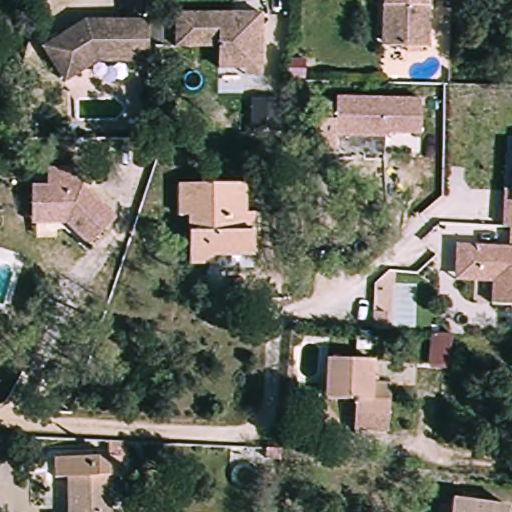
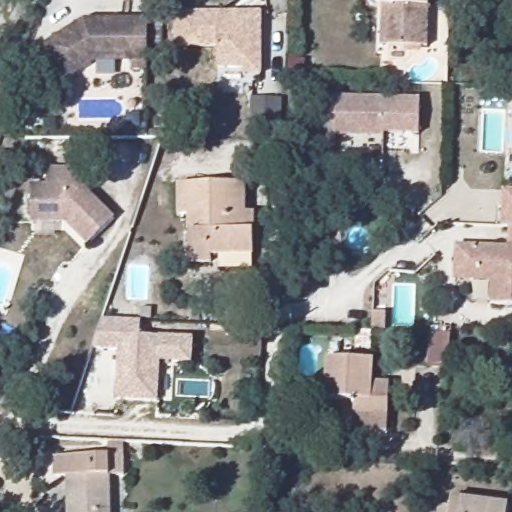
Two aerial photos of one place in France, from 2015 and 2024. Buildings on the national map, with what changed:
unchanged [(385,0),(432,0),(431,46),(394,45),(383,45),(385,3),(385,0)]
unchanged [(245,76),(244,70),(217,69),(217,46),(174,47),(175,14),(261,13),(261,60),(261,75),(245,76)]
unchanged [(145,69),(126,70),(125,59),(94,57),(86,63),(91,72),(66,87),(42,52),(82,25),(146,26),(145,69)]
unchanged [(322,100),(338,101),(339,95),(423,102),(420,136),(386,134),(385,138),(321,132),(322,100)]
unchanged [(32,211),(33,182),(48,182),(48,164),(83,165),(83,183),(114,217),(87,243),(67,220),(32,219),(32,211)]
unchanged [(244,183),(241,224),(251,227),(248,251),(208,248),(206,258),(186,257),(191,209),(181,209),(184,178),(244,183)]
unchanged [(512,189),(512,226),(509,225),(501,225),(503,205),(504,189),(512,189)]
unchanged [(453,269),(455,243),(500,245),(507,246),(509,225),(512,226),(512,303),(488,302),(490,279),(453,277),(453,269)]
new [(103,353),(103,322),(141,322),(140,337),(159,338),(195,339),(193,366),(160,364),(158,403),(115,401),(118,352),(103,353)]
unchanged [(446,359),(442,394),(422,393),(426,358),(446,359)]
unchanged [(347,414),(347,402),(325,399),(325,393),(328,359),(372,362),(370,383),(384,386),(383,398),(380,418),(347,414)]
unchanged [(69,511),(72,475),(62,474),(63,453),(118,456),(115,512),(75,512),(69,511)]
unchanged [(0,483),(0,455),(9,455),(7,484),(0,483)]
unchanged [(273,471),(271,481),(256,480),(257,470),(273,471)]
unchanged [(450,494),(505,501),(504,512),(449,512),(450,494)]

